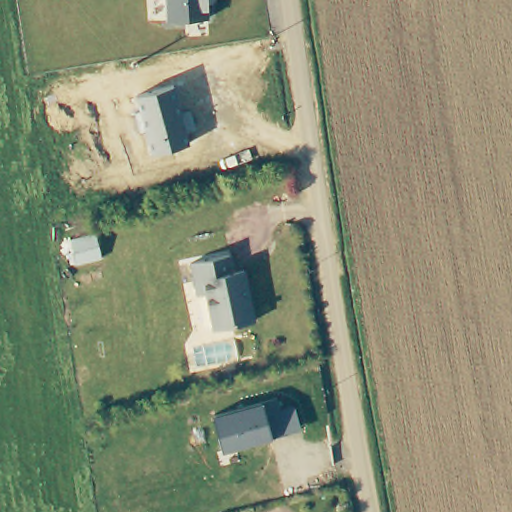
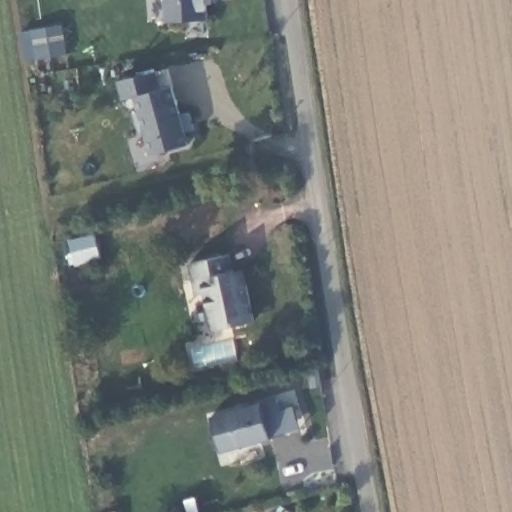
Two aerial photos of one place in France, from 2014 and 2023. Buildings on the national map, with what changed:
unchanged [(166,0),(207,0),(209,19),(168,20),(166,0)]
new [(65,25),(69,55),(40,60),(35,30),(65,25)]
unchanged [(151,152),(145,130),(141,130),(136,111),(140,111),(136,96),(174,86),(182,115),(190,112),(195,130),(186,131),(189,144),(151,152)]
unchanged [(77,264),(71,240),(96,233),(101,258),(77,264)]
unchanged [(214,330),(209,298),(197,300),(191,263),(232,257),(234,275),(246,273),(248,287),(254,323),(214,330)]
unchanged [(273,438),(222,451),(213,416),(265,401),(277,398),(280,410),(296,406),(301,430),(273,438)]

